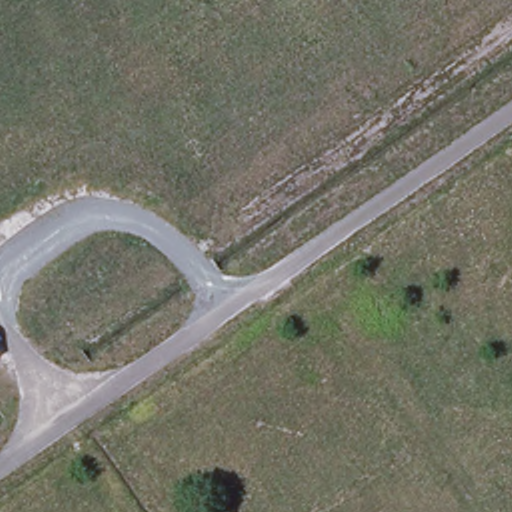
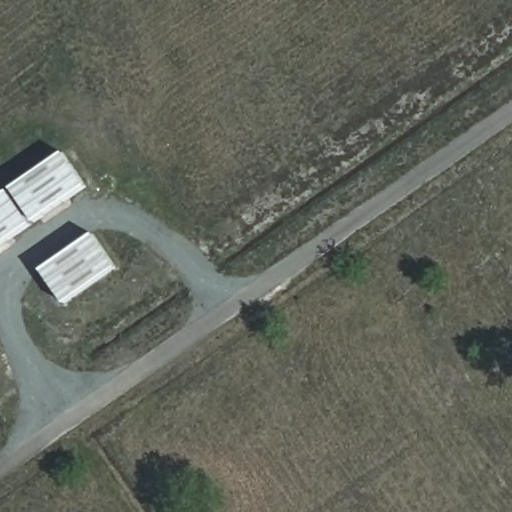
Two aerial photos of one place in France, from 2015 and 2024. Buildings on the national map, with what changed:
new [(64,152),(87,187),(35,224),(11,189),(64,152)]
new [(0,196),(9,191),(32,225),(0,246),(0,196)]
new [(65,306),(42,270),(93,233),(118,268),(65,306)]

